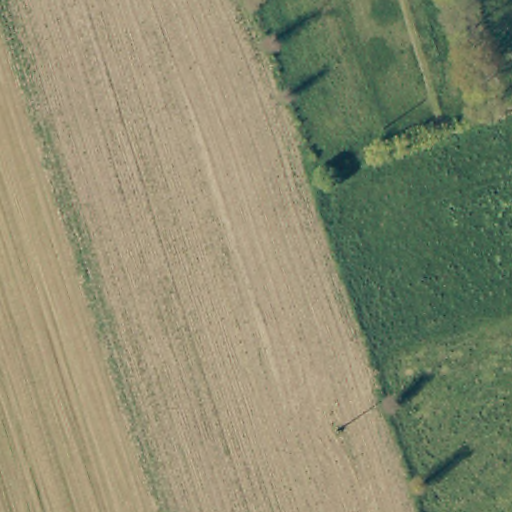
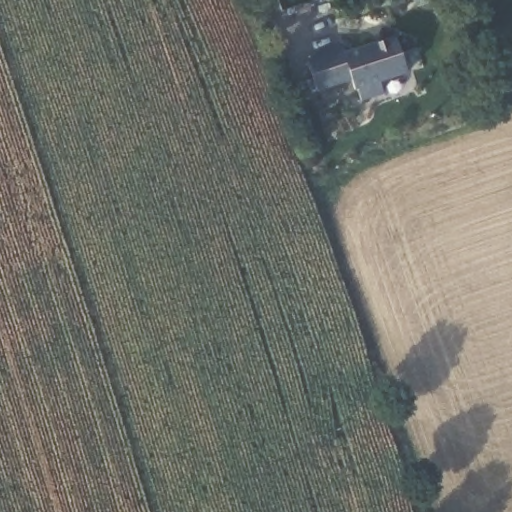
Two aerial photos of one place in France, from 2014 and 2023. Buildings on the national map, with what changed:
new [(343,50),(344,56),(394,40),(404,73),(379,82),(382,93),(360,100),(358,90),(354,91),(351,82),(318,91),(308,61),(343,50)]

